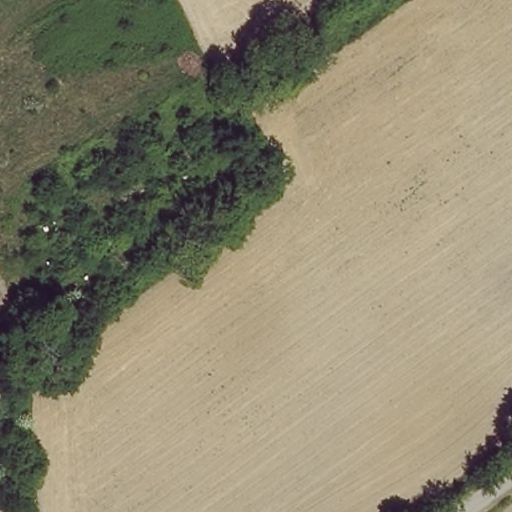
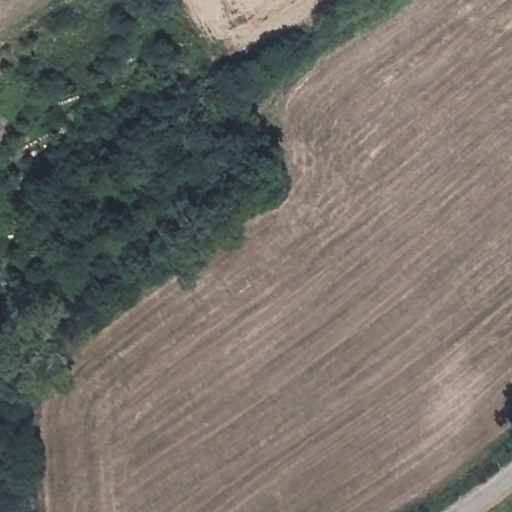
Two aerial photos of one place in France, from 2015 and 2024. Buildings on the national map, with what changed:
[]

